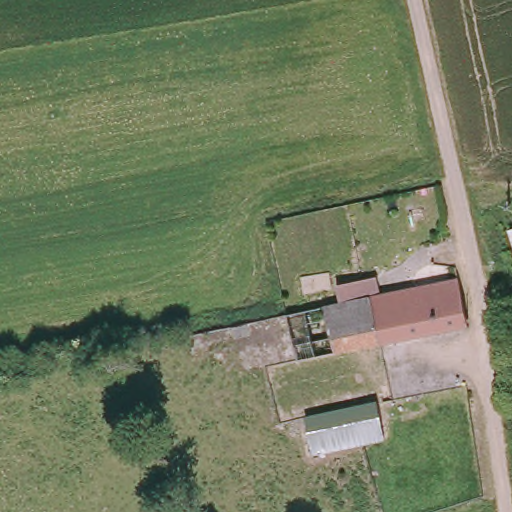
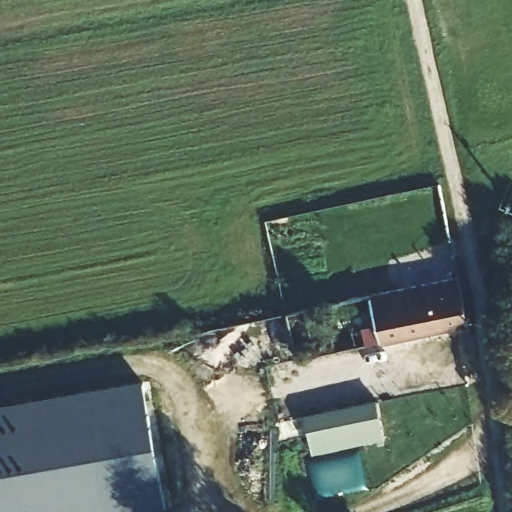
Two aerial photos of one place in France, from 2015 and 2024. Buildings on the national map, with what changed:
unchanged [(338,301),(336,283),(375,276),(378,287),(458,275),(468,322),(297,357),(291,312),(338,301)]
new [(166,512),(0,512),(0,405),(143,380),(166,512)]
unchanged [(306,417),(379,402),(384,444),(312,455),(306,417)]

